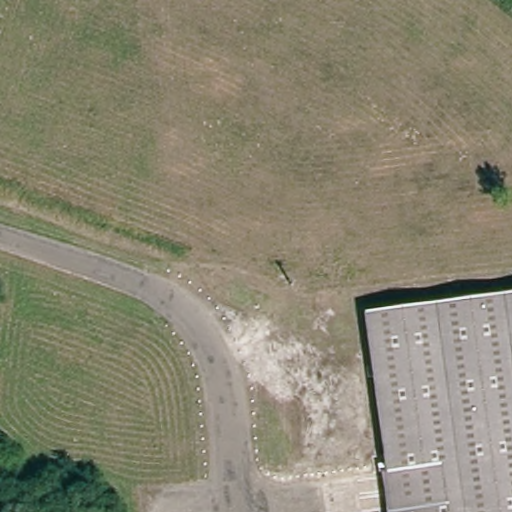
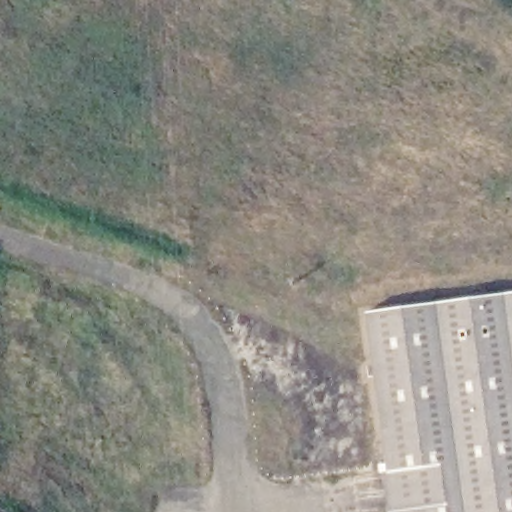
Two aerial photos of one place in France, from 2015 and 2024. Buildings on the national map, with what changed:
unchanged [(371,332),(406,327),(408,327),(512,312),(512,512),(395,512),(381,404),(371,332)]

